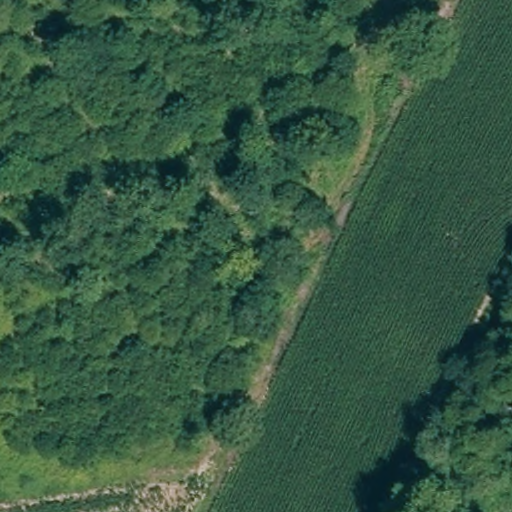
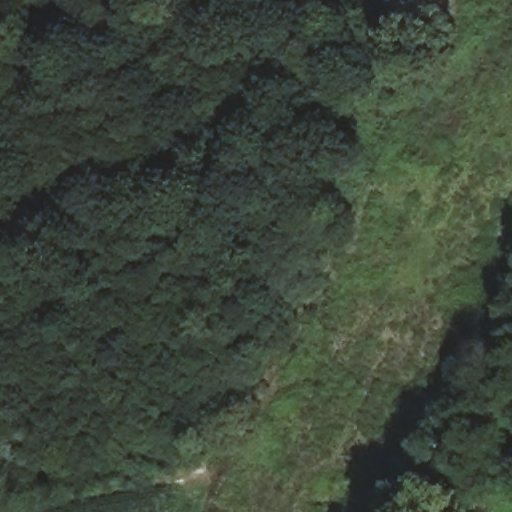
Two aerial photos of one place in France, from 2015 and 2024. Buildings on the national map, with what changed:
[]

